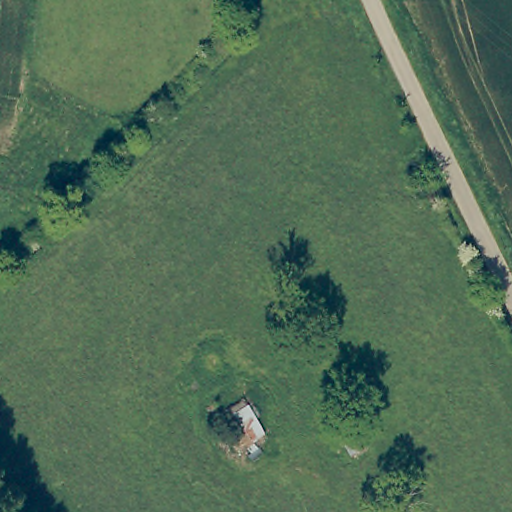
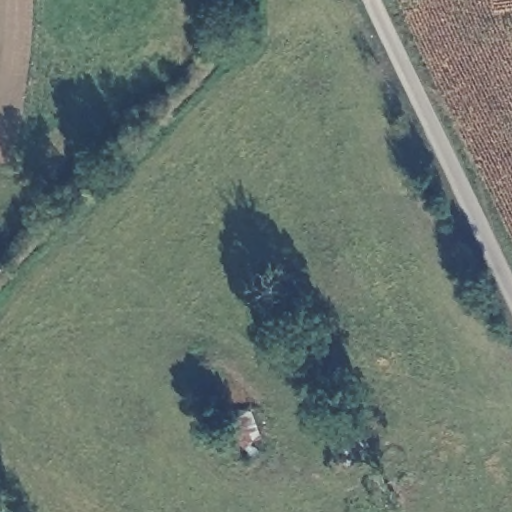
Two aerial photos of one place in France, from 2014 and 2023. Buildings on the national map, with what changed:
unchanged [(265,435),(250,443),(255,452),(242,457),(216,414),(242,396),(265,435)]

